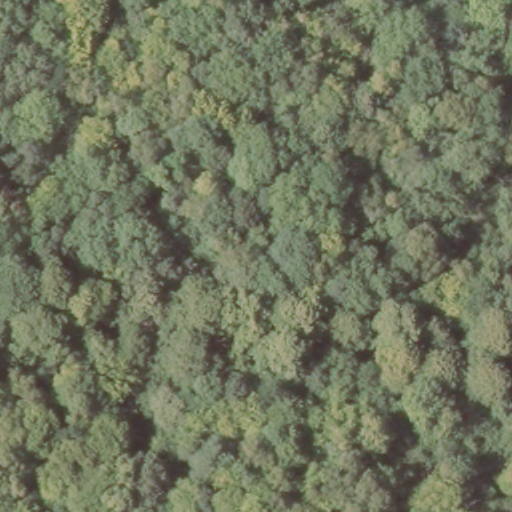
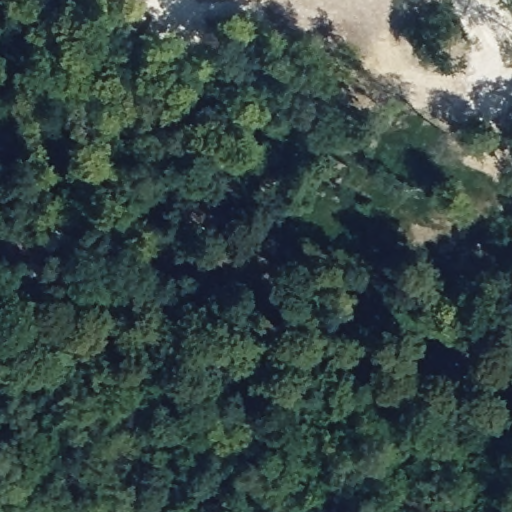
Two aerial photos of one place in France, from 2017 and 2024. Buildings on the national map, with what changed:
[]

